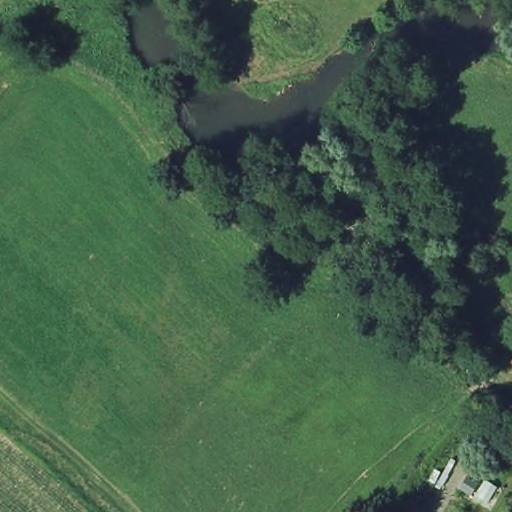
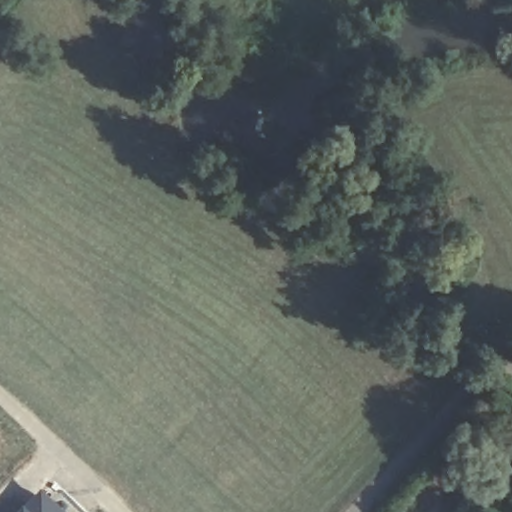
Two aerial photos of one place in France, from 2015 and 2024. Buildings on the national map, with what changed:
new [(64,512),(17,512),(40,489),(64,512)]

